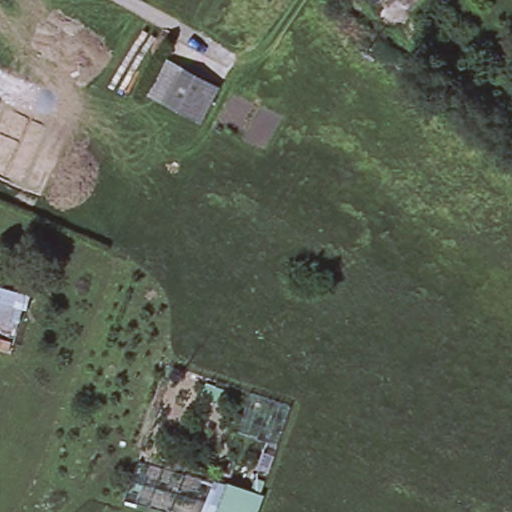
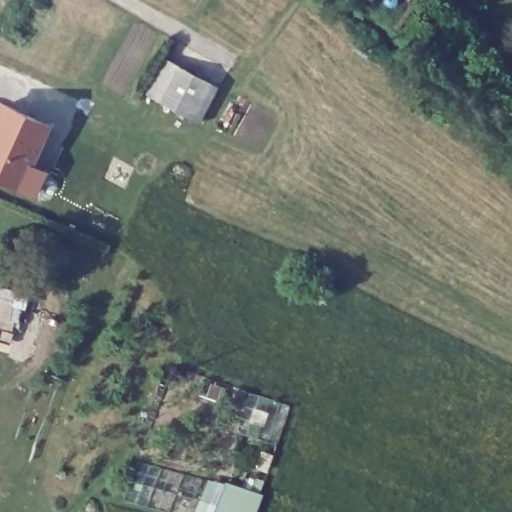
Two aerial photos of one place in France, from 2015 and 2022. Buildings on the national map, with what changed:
unchanged [(205,126),(170,107),(155,100),(172,66),(187,74),(222,94),(205,126)]
new [(55,124),(36,165),(50,171),(38,197),(0,181),(0,104),(1,100),(55,124)]
unchanged [(20,302),(13,327),(0,324),(0,297),(20,302)]
unchanged [(259,494),(253,512),(217,512),(227,483),(259,494)]

